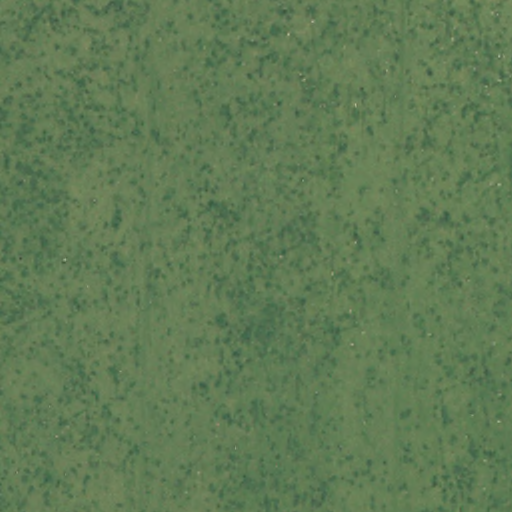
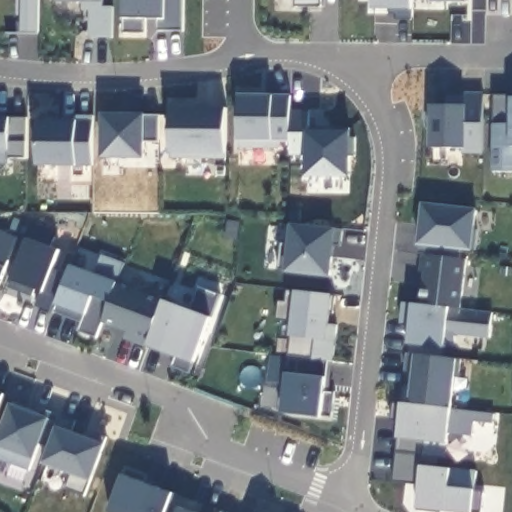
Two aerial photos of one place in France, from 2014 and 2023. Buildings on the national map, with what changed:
new [(39,34),(21,34),(22,0),(39,0),(39,34)]
new [(104,7),(114,7),(115,39),(90,39),(90,12),(83,12),(82,2),(56,1),(56,0),(104,0),(104,7)]
new [(128,0),(189,0),(188,31),(161,30),(161,14),(150,14),(150,33),(126,32),(128,0)]
new [(325,6),(299,6),(299,0),(325,0),(325,6)]
new [(413,10),(412,19),(397,19),(396,10),(373,9),(373,0),(413,0),(413,10)]
new [(467,3),(432,2),(431,0),(467,0),(467,3)]
new [(243,91),(263,91),(263,95),(295,96),(294,140),(284,140),(284,147),(243,147),(243,91)]
new [(452,105),(452,99),(452,97),(470,97),(470,94),(488,94),(488,152),(467,152),(467,148),(436,148),(437,105),(452,105)]
new [(512,94),(512,171),(498,171),(498,94),(512,94)]
new [(175,103),(200,103),(200,108),(230,108),(230,158),(174,158),(175,103)]
new [(95,166),(78,166),(39,166),(38,121),(78,121),(76,116),(95,116),(95,166)]
new [(144,117),(160,117),(160,142),(145,141),(145,158),(104,157),(104,116),(144,117)]
new [(10,160),(10,165),(9,165),(0,165),(0,118),(11,118),(28,120),(26,160),(10,160)]
new [(473,251),(458,250),(458,259),(467,260),(467,261),(462,310),(492,313),(490,339),(455,336),(454,342),(446,341),(445,349),(409,345),(411,326),(400,324),(403,304),(413,304),(420,305),(424,272),(418,272),(420,255),(419,244),(424,204),(477,211),(473,251)]
new [(333,279),(288,273),(279,271),(282,246),(290,246),(293,226),(337,230),(333,279)]
new [(212,318),(194,364),(190,373),(174,367),(177,358),(146,346),(124,339),(126,332),(104,323),(96,337),(80,331),(83,323),(55,312),(36,306),(44,294),(34,289),(33,298),(9,289),(11,280),(28,240),(33,229),(55,237),(50,247),(61,251),(54,268),(68,273),(71,265),(94,274),(102,256),(124,264),(119,282),(165,301),(190,310),(198,288),(219,296),(212,318)]
new [(8,268),(0,291),(0,230),(20,237),(8,268)]
new [(293,357),(297,323),(280,321),(281,320),(283,301),(290,302),(291,290),(340,295),(338,314),(334,314),(333,325),(341,326),(337,362),(332,362),(329,391),(339,392),(336,419),(286,414),(290,385),(272,383),(275,355),(293,357)]
new [(411,354),(463,359),(461,378),(458,377),(454,409),(414,404),(418,373),(409,372),(411,354)]
new [(0,416),(0,393),(8,395),(0,416)]
new [(32,408),(31,412),(41,416),(45,409),(64,416),(52,449),(43,445),(33,471),(0,459),(0,445),(16,402),(32,408)]
new [(52,449),(64,416),(79,422),(75,434),(86,438),(89,430),(110,438),(88,497),(69,490),(75,473),(46,463),(52,449)]
new [(126,468),(149,476),(143,483),(176,495),(172,505),(182,508),(191,512),(109,512),(125,474),(126,468)]
new [(222,512),(202,512),(206,505),(222,512)]

